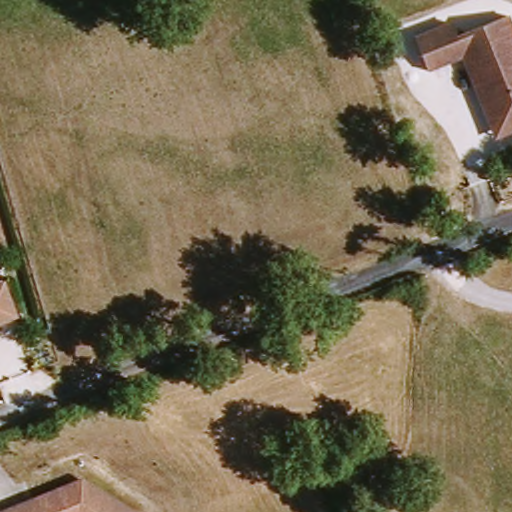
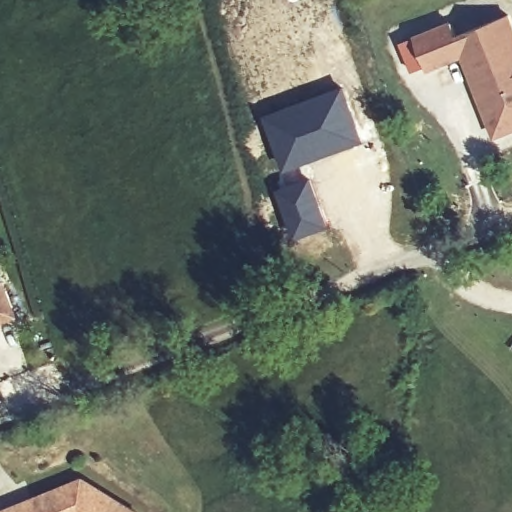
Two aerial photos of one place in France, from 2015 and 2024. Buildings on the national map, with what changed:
unchanged [(492,131),(470,56),(432,65),(424,32),(462,20),(467,38),(512,25),(512,126),(492,131)]
new [(342,85),(364,143),(285,170),(262,114),(342,85)]
new [(311,175),(327,227),(294,239),(274,188),(311,175)]
unchanged [(17,320),(0,327),(0,289),(5,287),(17,320)]
unchanged [(0,512),(0,510),(26,500),(86,477),(135,512),(0,512)]

